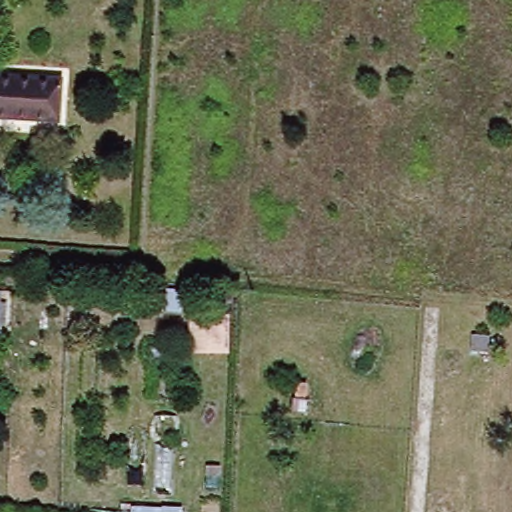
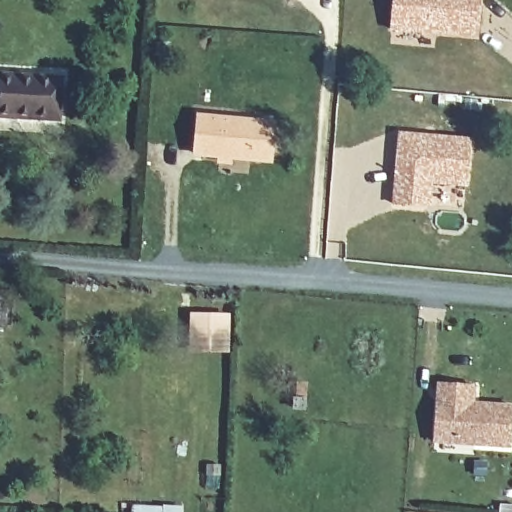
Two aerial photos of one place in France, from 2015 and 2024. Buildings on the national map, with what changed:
new [(394,29),(396,0),(479,0),(475,35),(394,29)]
unchanged [(67,85),(60,125),(0,117),(0,73),(67,85)]
new [(197,117),(272,125),(268,161),(193,154),(197,117)]
new [(399,133),(470,139),(467,187),(432,184),(430,208),(392,204),(399,133)]
unchanged [(188,352),(190,313),(229,315),(227,353),(188,352)]
new [(440,390),(472,392),(471,410),(511,412),(508,452),(475,450),(476,445),(436,442),(440,390)]
demolished [(153,491),(157,415),(177,416),(177,493),(153,491)]

